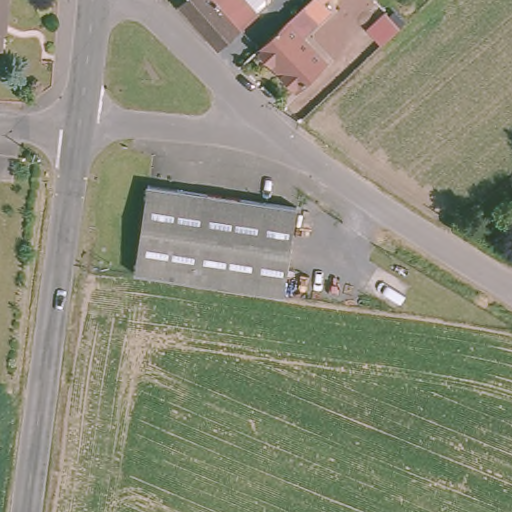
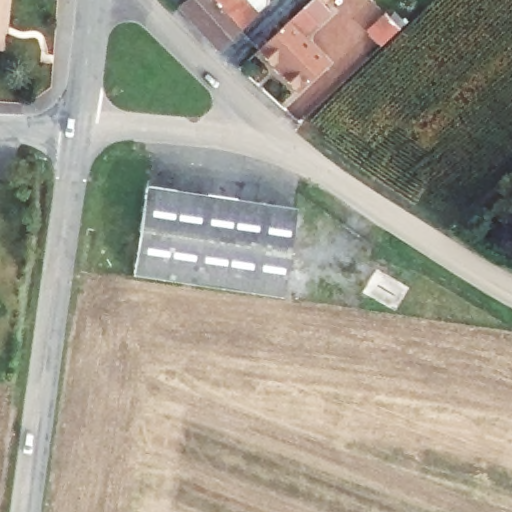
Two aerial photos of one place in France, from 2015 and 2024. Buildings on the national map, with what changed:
unchanged [(8,48),(0,47),(0,0),(14,0),(8,48)]
unchanged [(186,0),(240,0),(253,14),(218,46),(183,9),(186,0)]
unchanged [(311,0),(336,0),(329,6),(336,15),(309,42),(327,61),(297,87),(259,49),(311,0)]
unchanged [(364,35),(384,15),(402,30),(380,47),(364,35)]
unchanged [(150,270),(163,196),(286,214),(276,289),(150,270)]

